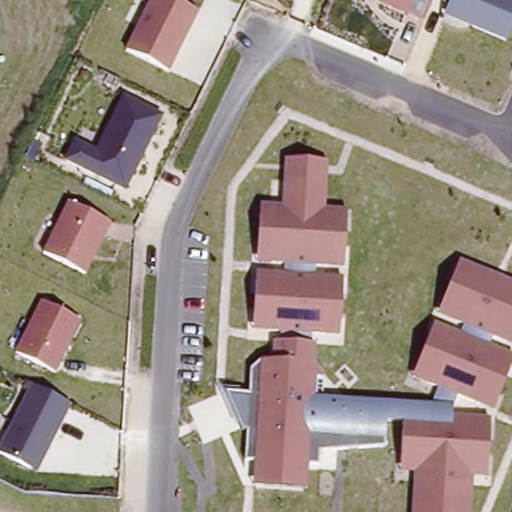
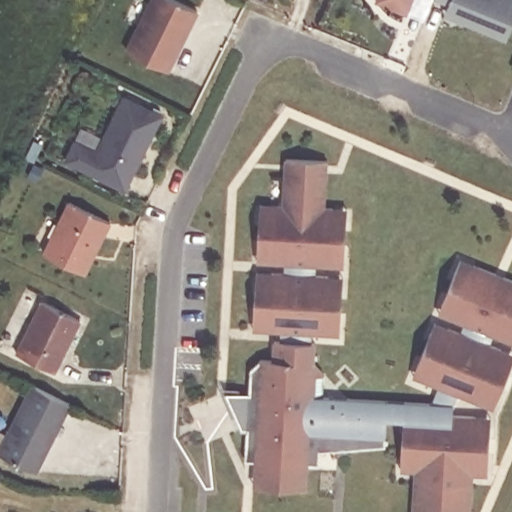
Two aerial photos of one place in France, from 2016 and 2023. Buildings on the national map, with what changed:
unchanged [(198,9),(168,73),(123,51),(147,0),(180,0),(198,9)]
unchanged [(404,10),(378,0),(408,0),(404,10)]
unchanged [(506,43),(442,13),(448,5),(439,0),(512,0),(512,28),(506,43)]
unchanged [(126,191),(60,158),(71,137),(94,147),(121,93),(163,115),(126,191)]
unchanged [(327,160),(326,208),(347,211),(343,268),(317,268),(317,277),(343,279),(340,336),(254,331),(258,271),(285,272),(285,263),(257,260),(260,203),(281,203),(284,160),(327,160)]
unchanged [(110,218),(83,272),(43,251),(70,201),(110,218)]
unchanged [(413,377),(435,322),(460,331),(463,324),(438,313),(460,258),(512,280),(512,342),(492,334),(488,342),(512,353),(512,358),(492,406),(413,377)]
unchanged [(81,317),(56,372),(15,353),(39,297),(81,317)]
unchanged [(273,340),(316,342),(315,395),(455,402),(455,420),(490,422),(487,477),(471,477),(469,512),(411,512),(412,473),(405,473),(405,420),(387,419),(383,446),(317,449),(316,464),(308,463),(306,489),(253,485),(253,460),(246,458),(245,431),(238,430),(224,390),(248,391),(249,367),(263,358),(273,356),(273,340)]
unchanged [(70,405),(33,471),(0,451),(0,449),(35,386),(70,405)]

